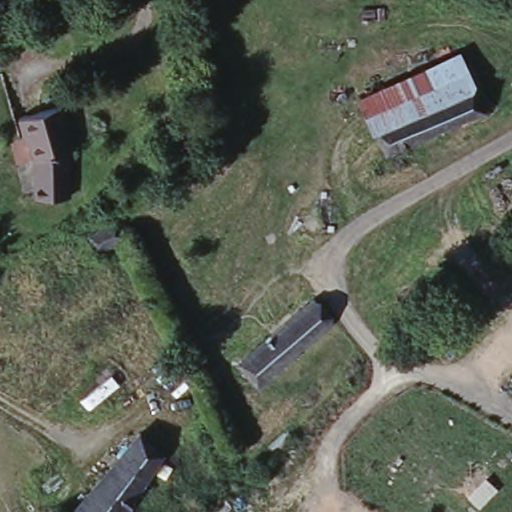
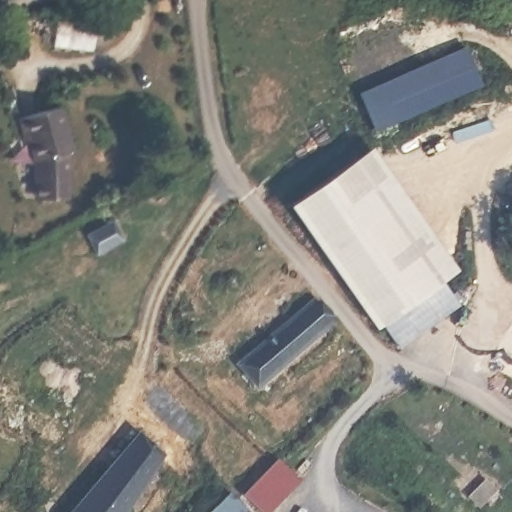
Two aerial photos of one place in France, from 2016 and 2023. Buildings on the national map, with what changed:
unchanged [(350,82),(445,29),(465,62),(368,116),(350,82)]
demolished [(478,82),(490,109),(393,152),(381,126),(478,82)]
unchanged [(78,143),(73,144),(73,191),(44,191),(44,175),(41,175),(40,153),(35,134),(31,135),(30,129),(24,108),(65,97),(78,143)]
new [(370,143),(458,266),(377,324),(289,201),(370,143)]
unchanged [(115,220),(124,237),(98,250),(89,233),(115,220)]
unchanged [(315,297),(332,316),(263,376),(247,356),(315,297)]
unchanged [(165,454),(123,512),(68,512),(139,429),(165,454)]
new [(248,509),(245,512),(209,512),(232,491),(248,509)]

